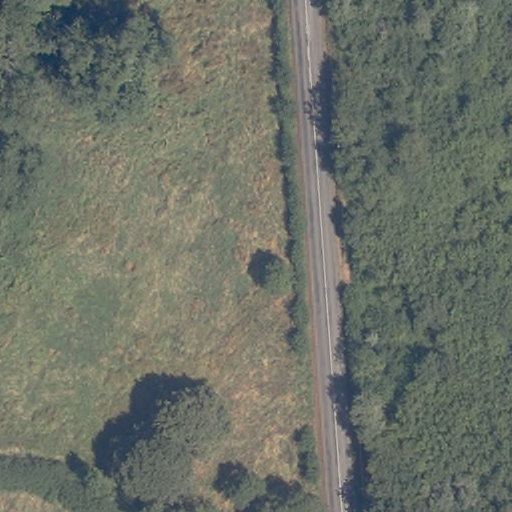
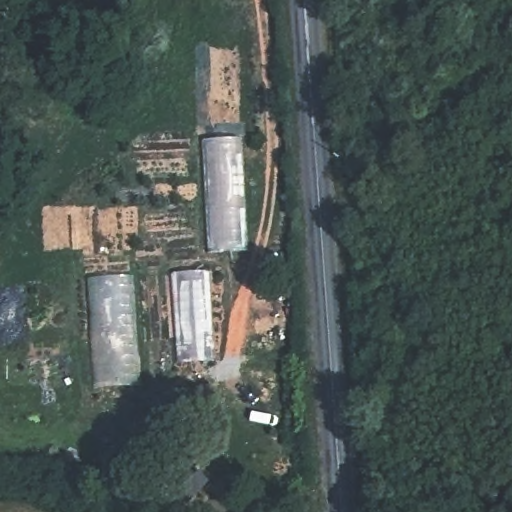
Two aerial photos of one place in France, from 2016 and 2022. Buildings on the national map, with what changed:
new [(245,137),(249,250),(210,251),(205,138),(245,137)]
new [(211,270),(215,359),(179,361),(174,272),(211,270)]
new [(142,386),(97,387),(92,277),(137,275),(142,386)]

